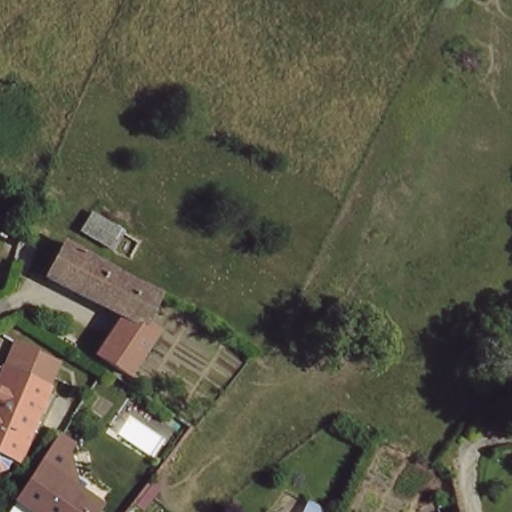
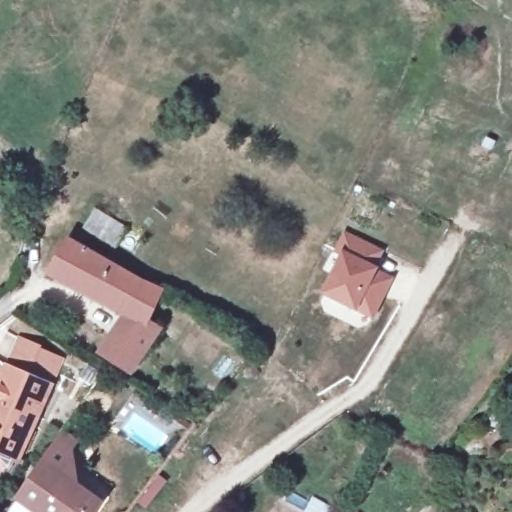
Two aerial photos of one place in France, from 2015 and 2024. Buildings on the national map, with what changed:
unchanged [(5,210),(15,216),(4,246),(0,244),(0,174),(18,185),(5,210)]
unchanged [(108,223),(148,247),(138,264),(88,234),(96,215),(108,223)]
new [(356,312),(321,294),(340,254),(335,251),(344,233),(384,252),(376,269),(394,278),(373,320),(356,312)]
unchanged [(129,280),(146,290),(148,292),(167,300),(151,327),(162,334),(130,379),(103,360),(130,322),(54,280),(73,248),(129,280)]
unchanged [(44,386),(1,369),(16,333),(67,353),(53,389),(44,386)]
unchanged [(44,386),(13,462),(0,456),(0,371),(1,369),(44,386)]
unchanged [(25,489),(43,463),(103,506),(99,512),(39,512),(38,512),(11,512),(25,489)]

